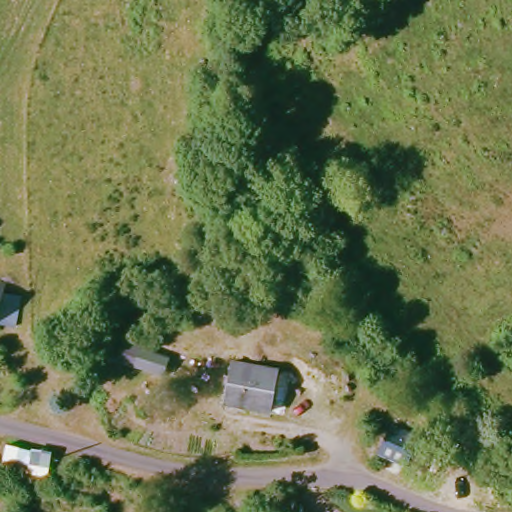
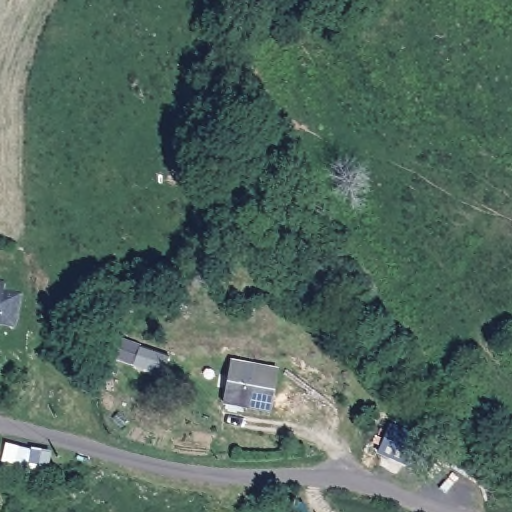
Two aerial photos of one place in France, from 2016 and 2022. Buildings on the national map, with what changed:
unchanged [(2,276),(0,285),(0,275),(2,276)]
unchanged [(14,295),(9,329),(0,327),(0,294),(14,295)]
unchanged [(280,322),(275,337),(260,333),(267,318),(280,322)]
unchanged [(219,401),(230,360),(276,371),(266,414),(219,401)]
unchanged [(425,439),(412,467),(375,450),(389,422),(425,439)]
unchanged [(5,441),(49,452),(43,475),(0,464),(0,458),(5,441)]

